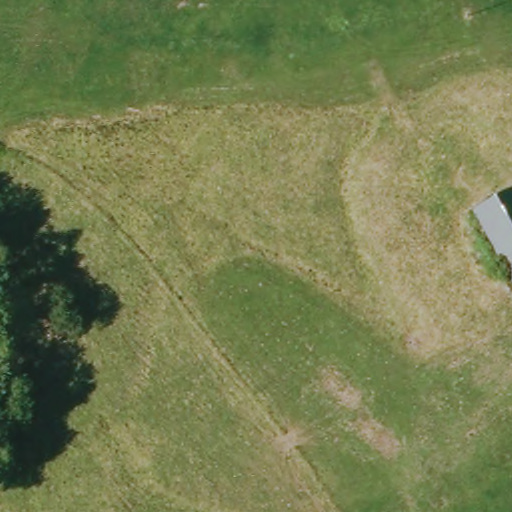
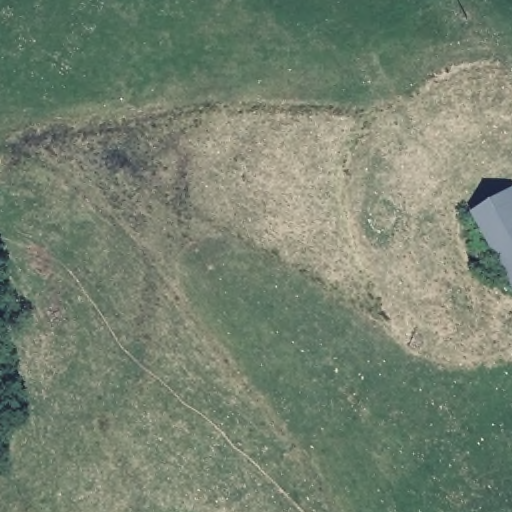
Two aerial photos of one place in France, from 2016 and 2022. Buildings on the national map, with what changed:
unchanged [(506,188),(512,198),(512,280),(470,211),(506,188)]

